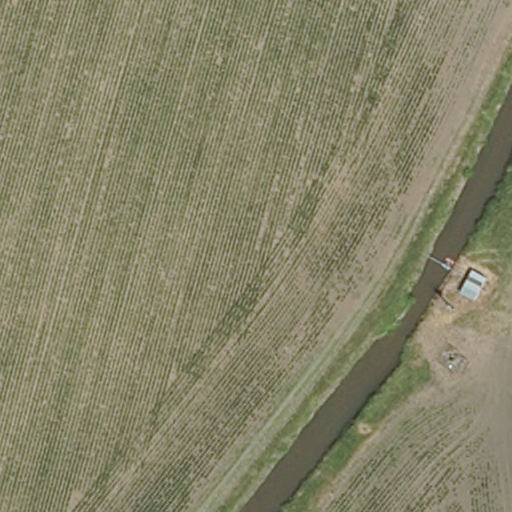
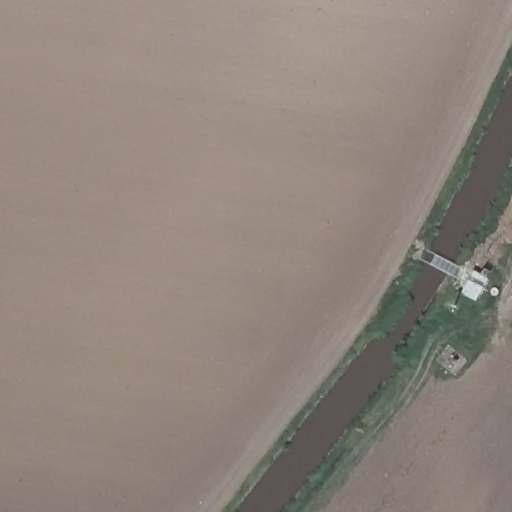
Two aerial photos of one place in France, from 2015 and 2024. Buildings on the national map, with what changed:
unchanged [(472,292),(460,287),(471,266),(483,272),(472,292)]

